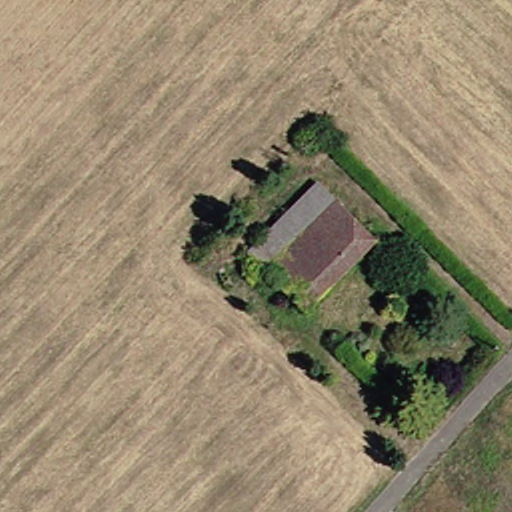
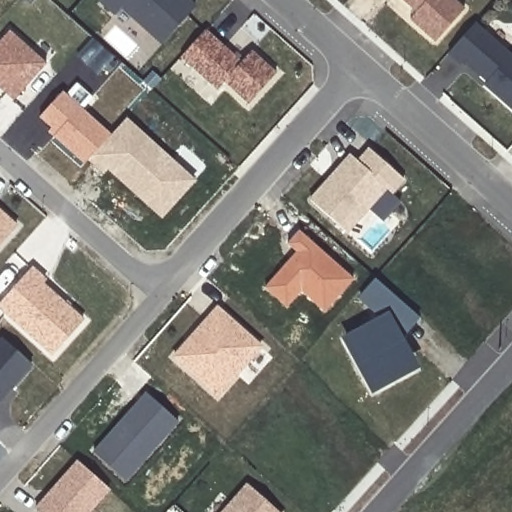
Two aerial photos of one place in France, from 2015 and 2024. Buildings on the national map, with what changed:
new [(121,9),(114,17),(99,2),(101,0),(190,0),(196,6),(162,46),(121,9)]
new [(464,9),(436,42),(410,20),(416,13),(402,0),(454,0),(464,9)]
new [(464,61),(462,65),(449,53),(474,25),(512,58),(512,108),(485,85),(486,84),(480,78),(482,77),(464,61)]
new [(204,31),(240,62),(250,51),(275,74),(248,105),(224,82),(217,90),(180,58),(204,31)]
new [(46,65),(14,101),(0,89),(0,43),(10,32),(46,65)]
new [(83,165),(48,132),(52,128),(39,117),(64,91),(111,135),(87,161),(83,165)]
new [(108,170),(103,175),(87,161),(111,135),(127,118),(197,181),(162,219),(108,170)]
new [(350,154),(358,161),(369,147),(406,181),(393,195),(387,190),(348,234),(309,199),(350,154)]
demolished [(377,242),(308,312),(252,254),(320,184),(377,242)]
new [(0,245),(0,213),(16,227),(0,245)]
new [(264,287),(295,252),(287,244),(299,230),(354,280),(325,312),(302,291),(287,307),(264,287)]
new [(45,281),(41,285),(83,321),(53,355),(0,307),(0,303),(31,268),(45,281)]
new [(374,393),(369,385),(346,340),(386,317),(361,295),(376,278),(413,312),(396,331),(413,362),(417,370),(374,393)]
new [(176,357),(219,309),(262,347),(219,396),(176,357)]
new [(33,366),(0,402),(0,339),(1,337),(33,366)]
new [(94,452),(145,392),(179,422),(126,481),(94,452)]
new [(89,512),(37,512),(35,511),(79,462),(109,489),(89,512)]
new [(278,512),(223,512),(247,485),(278,512)]

